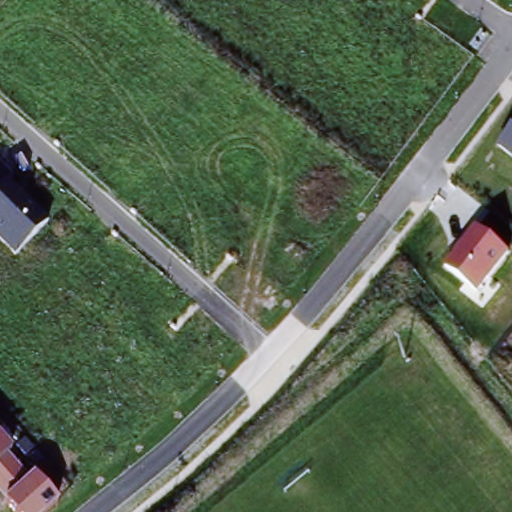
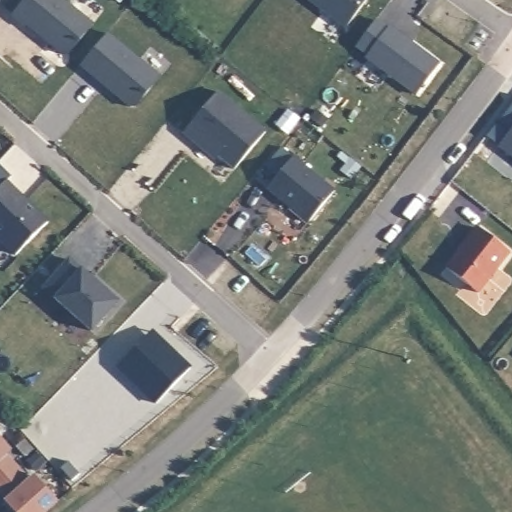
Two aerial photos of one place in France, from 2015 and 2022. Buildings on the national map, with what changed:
new [(26,26),(25,29),(12,18),(27,0),(60,0),(92,26),(69,55),(62,56),(26,26)]
new [(306,0),(368,0),(346,30),(306,0)]
new [(375,22),(387,31),(390,29),(439,65),(417,97),(366,60),(369,57),(356,49),(375,22)]
new [(80,67),(107,35),(160,79),(135,108),(129,109),(100,85),(80,67)]
new [(265,134),(235,171),(199,140),(195,145),(183,135),(217,94),(265,134)]
unchanged [(512,154),(500,144),(512,128),(512,154)]
new [(294,158),(335,192),(309,225),(267,190),(294,158)]
unchanged [(0,239),(0,166),(12,177),(7,183),(47,220),(14,254),(0,239)]
unchanged [(477,227),(510,252),(477,293),(445,267),(477,227)]
new [(91,333),(55,300),(80,271),(117,304),(91,333)]
new [(157,406),(140,391),(117,368),(146,338),(151,333),(176,356),(177,357),(190,370),(157,406)]
unchanged [(12,449),(7,452),(29,478),(32,473),(57,502),(48,512),(16,512),(0,495),(0,436),(12,449)]
new [(67,463),(80,476),(72,483),(60,470),(67,463)]

